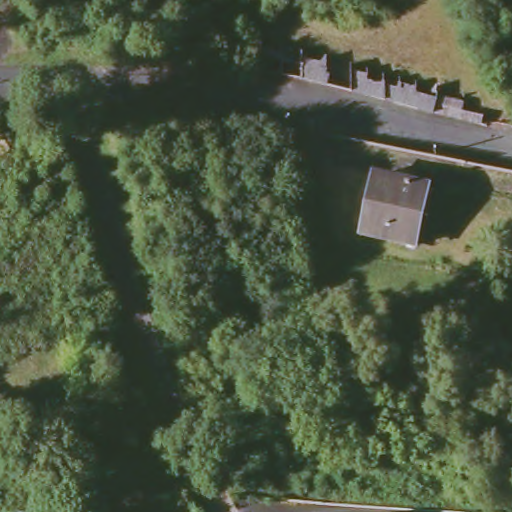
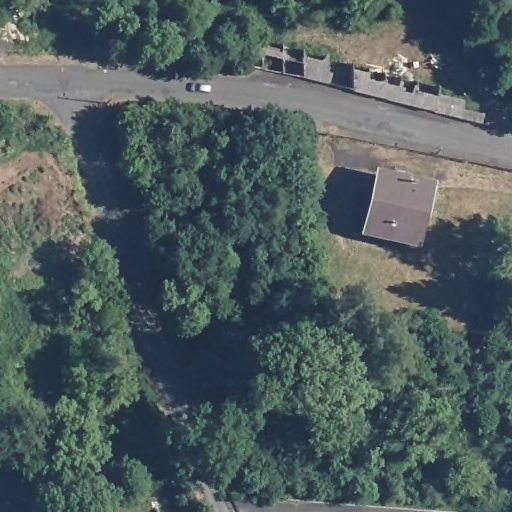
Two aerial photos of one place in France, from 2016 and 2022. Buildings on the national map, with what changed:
unchanged [(430,187),(417,247),(363,236),(376,176),(430,187)]

